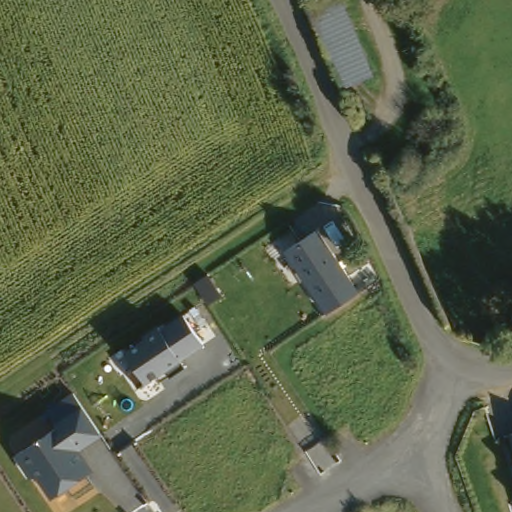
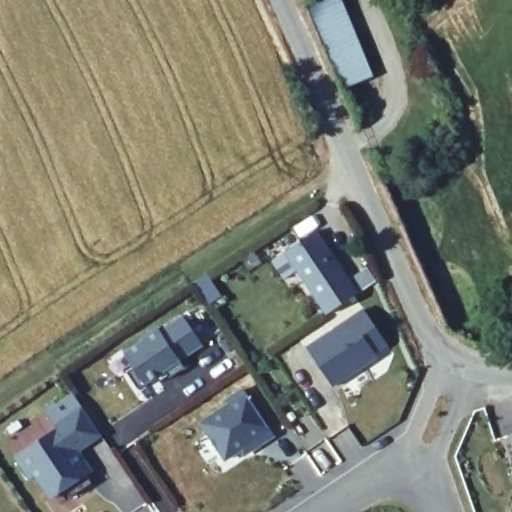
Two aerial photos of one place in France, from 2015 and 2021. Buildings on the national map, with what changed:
unchanged [(381,74),(351,90),(315,5),(329,0),(353,0),(381,74)]
unchanged [(280,257),(317,232),(358,294),(320,317),(280,257)]
new [(365,310),(387,345),(375,354),(379,361),(333,388),(309,348),(365,310)]
unchanged [(145,387),(122,353),(181,314),(203,347),(145,387)]
new [(255,385),(261,393),(252,399),(246,391),(255,385)]
new [(230,405),(228,401),(244,391),(274,437),(257,448),(254,442),(224,461),(201,424),(230,405)]
unchanged [(35,476),(30,481),(14,457),(58,429),(44,411),(73,392),(101,436),(80,451),(94,473),(87,478),(91,485),(73,498),(67,490),(50,500),(35,476)]
unchanged [(512,435),(512,464),(504,437),(512,435)]
unchanged [(512,469),(512,478),(510,470),(512,469)]

